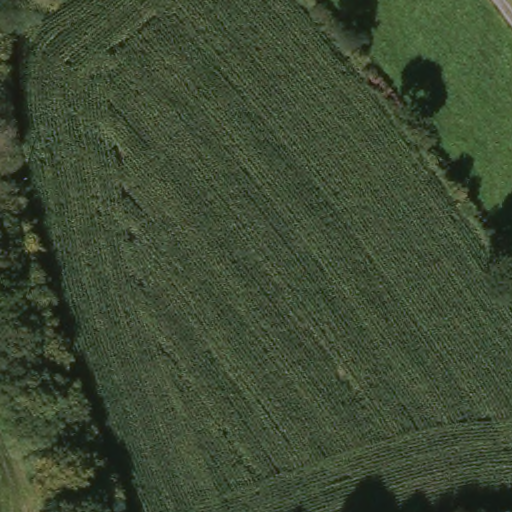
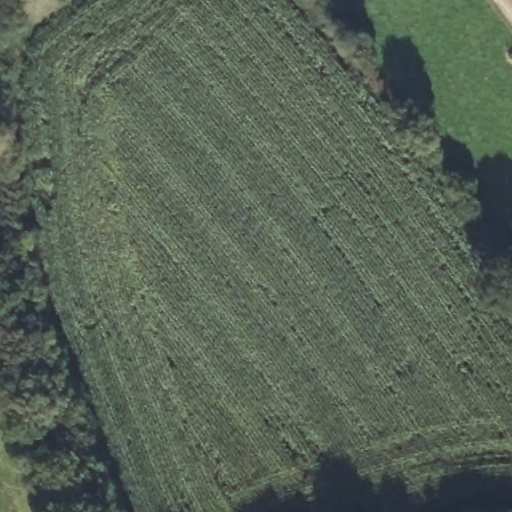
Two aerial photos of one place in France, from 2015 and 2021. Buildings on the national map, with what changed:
[]

